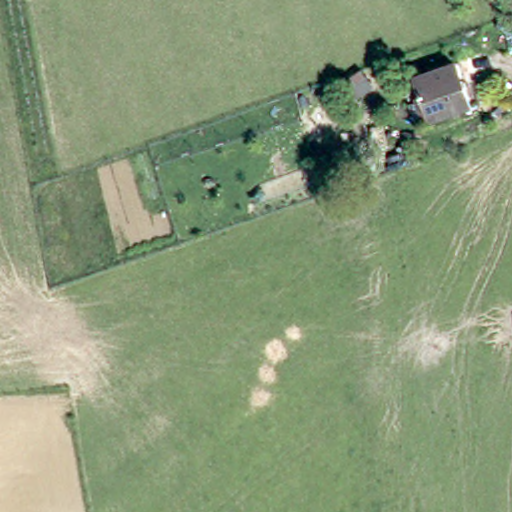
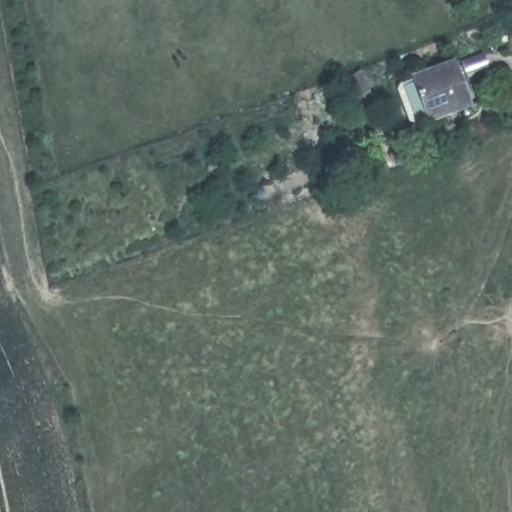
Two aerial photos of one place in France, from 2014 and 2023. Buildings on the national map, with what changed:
unchanged [(432,116),(413,76),(450,57),(470,97),(432,116)]

